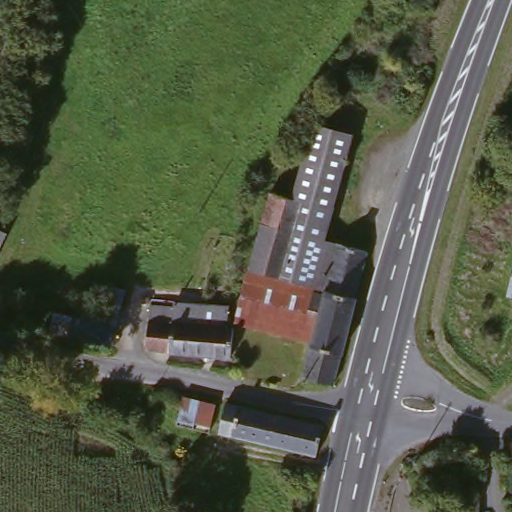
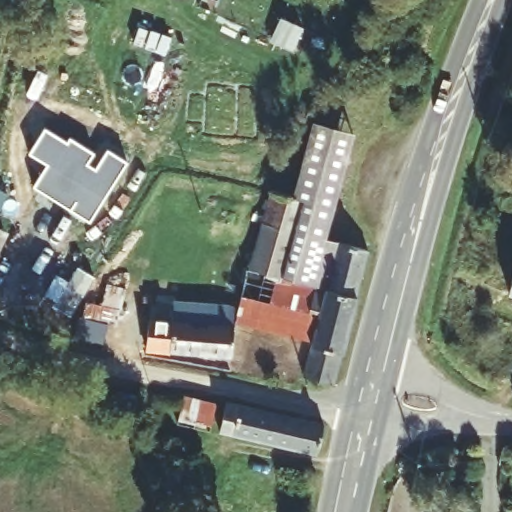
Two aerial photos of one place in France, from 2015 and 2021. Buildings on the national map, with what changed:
unchanged [(147,346),(148,297),(239,305),(268,194),(293,199),(313,123),(358,134),(330,242),(313,342),(239,327),(235,361),(147,346)]
new [(28,153),(45,128),(67,143),(70,139),(94,155),(87,166),(94,171),(107,152),(127,166),(87,224),(68,211),(32,187),(46,165),(28,153)]
unchanged [(2,232),(0,237),(0,231),(2,232)]
unchanged [(369,249),(346,350),(333,385),(303,377),(313,342),(330,242),(369,249)]
unchanged [(504,259),(512,260),(512,305),(498,302),(504,259)]
unchanged [(42,341),(48,317),(77,324),(81,310),(118,316),(109,352),(42,341)]
unchanged [(194,395),(206,395),(206,425),(178,423),(171,423),(171,419),(173,393),(194,395)]
unchanged [(315,433),(304,461),(302,461),(208,424),(219,396),(315,433)]

